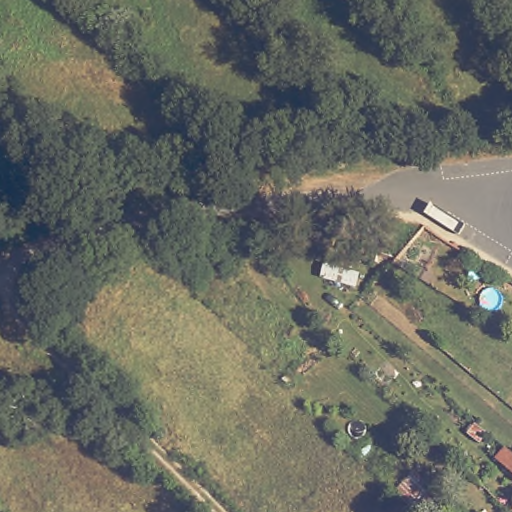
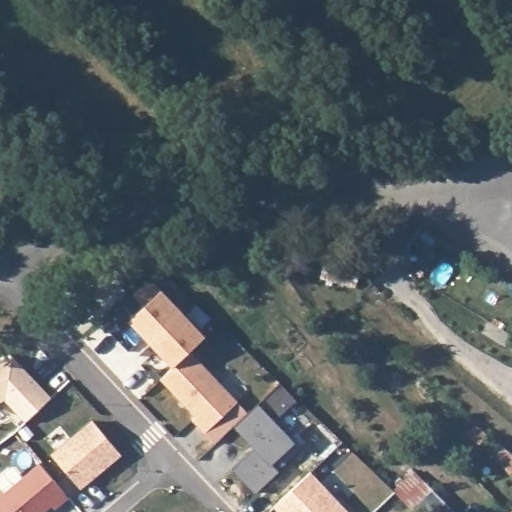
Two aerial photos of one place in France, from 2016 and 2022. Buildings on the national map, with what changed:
unchanged [(360,273),(357,286),(321,277),(325,263),(360,273)]
new [(140,288),(155,281),(163,289),(208,337),(192,351),(250,412),(259,403),(297,444),(273,464),(281,473),(256,496),(233,469),(254,448),(235,427),(216,444),(193,419),(195,417),(159,379),(172,367),(129,320),(145,305),(132,294),(140,288)]
new [(14,356),(54,397),(27,424),(5,401),(0,403),(0,362),(14,356)]
new [(92,419),(123,456),(81,490),(51,455),(92,419)]
unchanged [(497,445),(502,448),(505,446),(512,450),(512,468),(490,454),(497,445)]
unchanged [(431,479),(410,502),(390,483),(411,460),(431,479)]
new [(67,496),(48,512),(0,512),(0,496),(40,462),(67,496)]
new [(349,512),(280,512),(274,506),(311,471),(349,512)]
unchanged [(426,484),(454,512),(420,512),(410,502),(426,484)]

